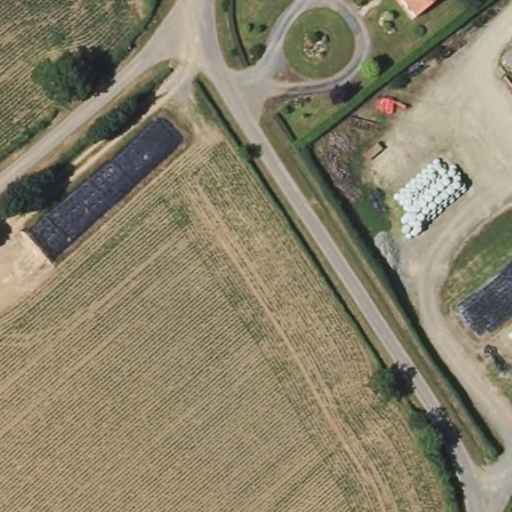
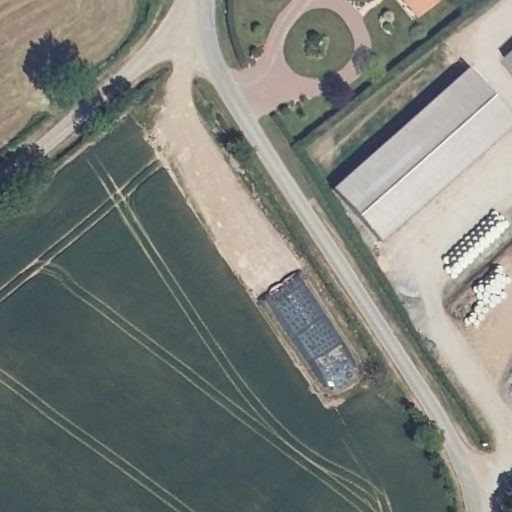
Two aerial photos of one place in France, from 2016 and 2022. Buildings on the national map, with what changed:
unchanged [(400,0),(435,0),(414,17),(400,0)]
unchanged [(512,49),(512,75),(499,60),(512,49)]
new [(512,122),(378,242),(330,189),(465,69),(512,121),(512,122)]

